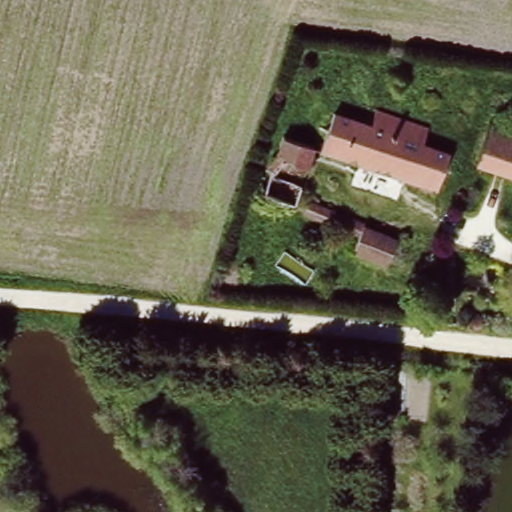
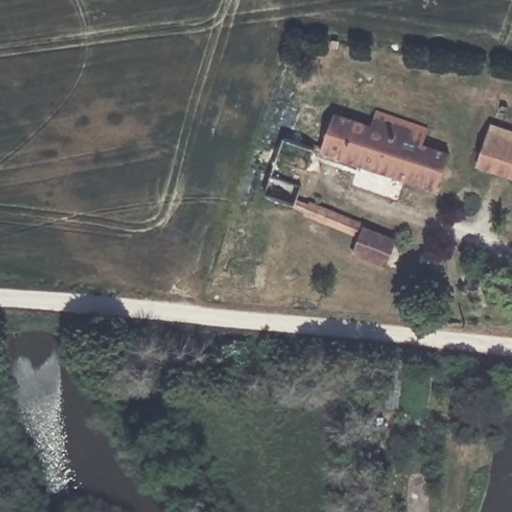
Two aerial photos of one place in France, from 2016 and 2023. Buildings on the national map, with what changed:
unchanged [(291,96),(368,122),(374,107),(426,125),(421,140),(428,143),(433,127),(466,139),(461,154),(446,149),(434,183),(320,144),(329,116),(289,102),(291,96)]
unchanged [(512,127),(512,170),(476,158),(488,120),(512,127)]
unchanged [(279,131),(314,142),(296,194),(359,216),(358,221),(355,230),(293,207),(295,199),(261,188),(279,131)]
unchanged [(358,221),(393,233),(383,261),(348,249),(355,230),(358,221)]

